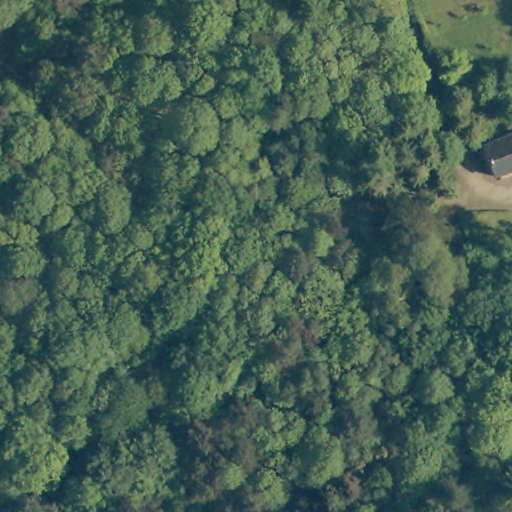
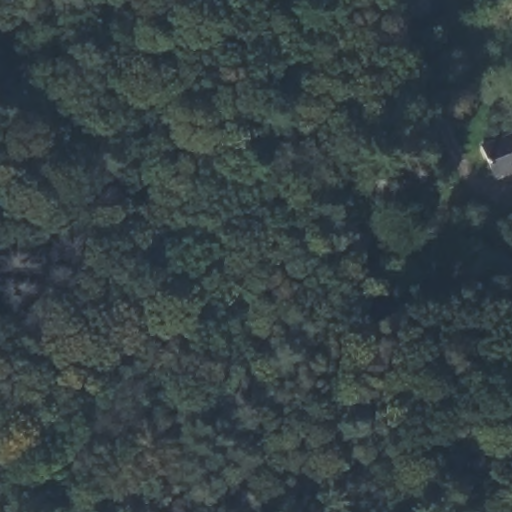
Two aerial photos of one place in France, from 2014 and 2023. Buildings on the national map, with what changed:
unchanged [(509,170),(496,139),(512,132),(512,169),(509,170)]
unchanged [(374,177),(394,222),(362,235),(342,190),(374,177)]

